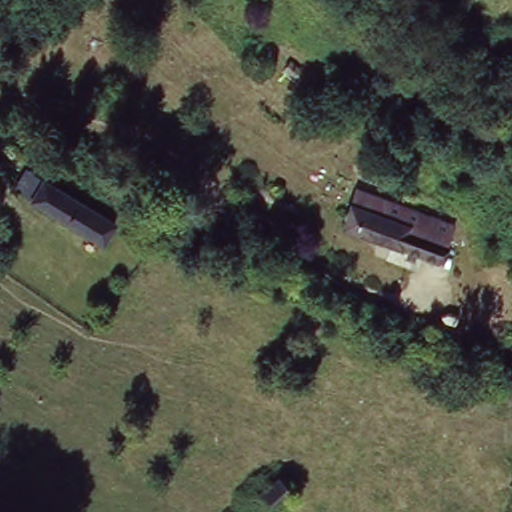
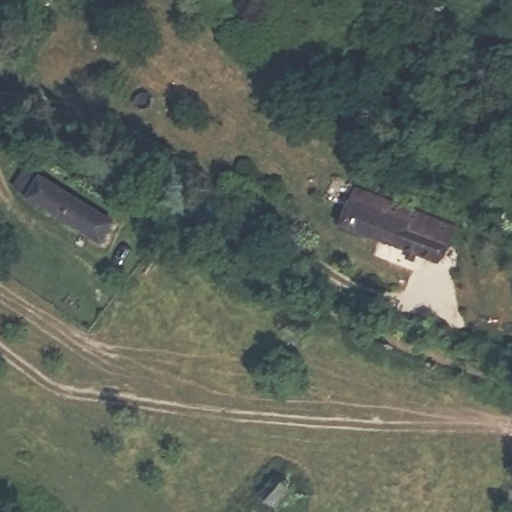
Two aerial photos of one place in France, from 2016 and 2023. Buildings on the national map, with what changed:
unchanged [(114,216),(108,229),(96,222),(90,231),(25,197),(38,175),(114,216)]
unchanged [(438,255),(430,252),(345,222),(358,188),(451,224),(438,255)]
unchanged [(287,491),(274,506),(258,493),(273,477),(287,491)]

